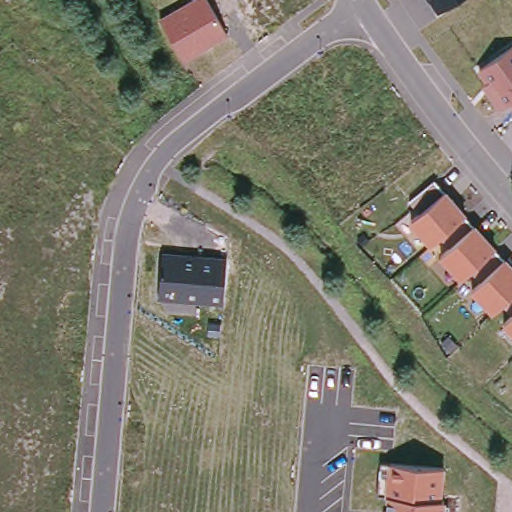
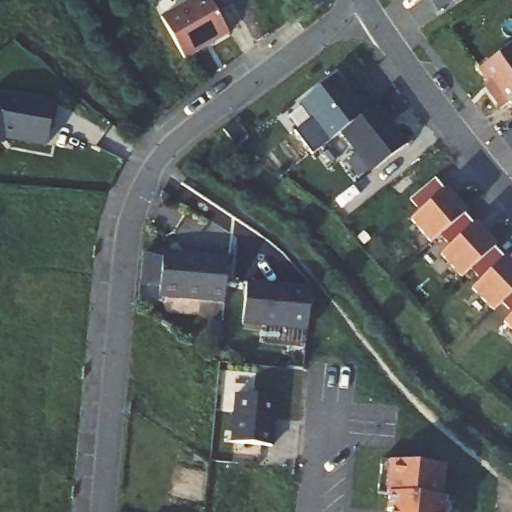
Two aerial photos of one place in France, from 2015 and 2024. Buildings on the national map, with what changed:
unchanged [(207,0),(225,35),(184,60),(159,16),(187,0),(207,0)]
unchanged [(432,0),(456,0),(439,11),(432,0)]
unchanged [(509,98),(499,107),(484,85),(487,82),(479,71),(512,48),(512,102),(509,98)]
new [(343,130),(311,152),(297,132),(312,118),(302,102),(335,75),(355,101),(361,96),(370,110),(377,105),(407,144),(372,170),(343,130)]
new [(3,141),(0,143),(0,92),(55,102),(45,147),(3,141)]
unchanged [(467,213),(505,255),(512,263),(512,307),(506,300),(491,313),(469,289),(482,277),(474,268),(464,277),(440,251),(449,243),(442,236),(433,245),(410,219),(418,211),(409,201),(435,177),(467,213)]
unchanged [(224,254),(220,301),(159,294),(162,248),(224,254)]
new [(311,294),(307,332),(242,327),(247,287),(311,294)]
unchanged [(502,321),(512,312),(512,331),(502,321)]
new [(273,446),(230,443),(234,396),(275,399),(273,446)]
unchanged [(445,465),(444,498),(449,498),(447,512),(385,512),(386,502),(385,490),(380,490),(382,459),(445,465)]

